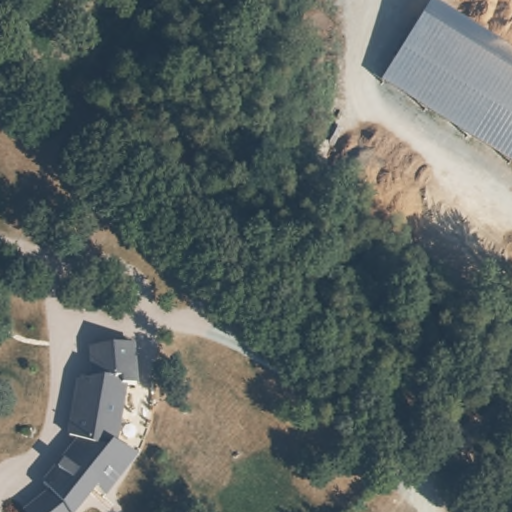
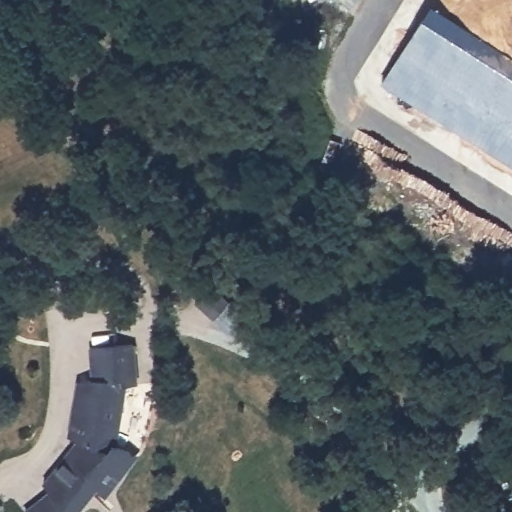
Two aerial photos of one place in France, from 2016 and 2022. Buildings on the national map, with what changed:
unchanged [(512,55),(512,164),(383,82),(430,4),(512,55)]
unchanged [(89,376),(129,341),(157,372),(127,399),(118,389),(118,399),(117,419),(115,428),(111,438),(107,447),(102,455),(118,467),(109,481),(100,493),(89,485),(88,486),(75,501),(63,511),(45,488),(45,489),(39,480),(50,470),(63,456),(74,438),(65,433),(67,427),(70,420),(71,415),(73,408),(74,403),(74,397),(82,398),(84,377),(89,376)]
unchanged [(63,511),(64,512),(24,512),(21,508),(45,489),(45,488),(63,511)]

